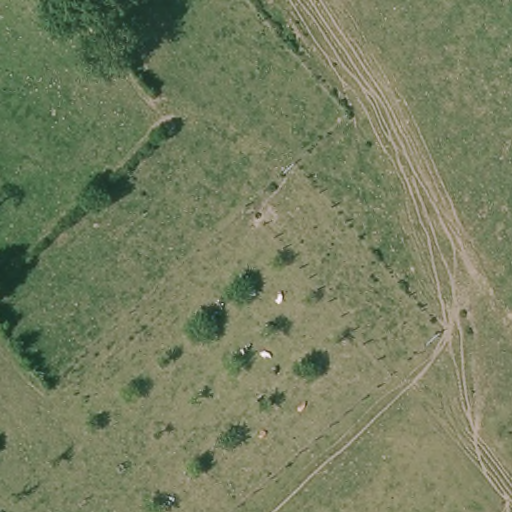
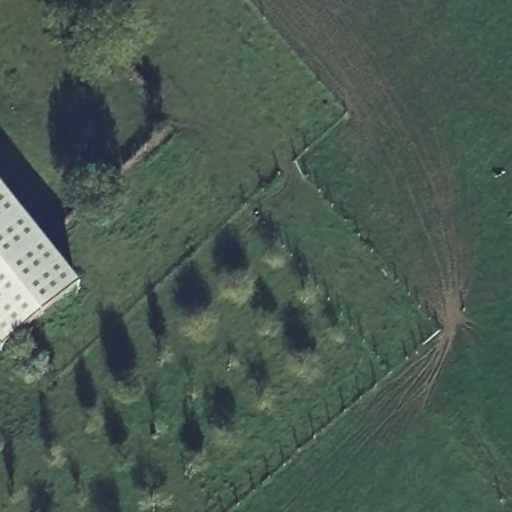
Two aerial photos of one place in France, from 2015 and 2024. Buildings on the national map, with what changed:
new [(83,290),(6,355),(0,346),(0,186),(83,290)]

